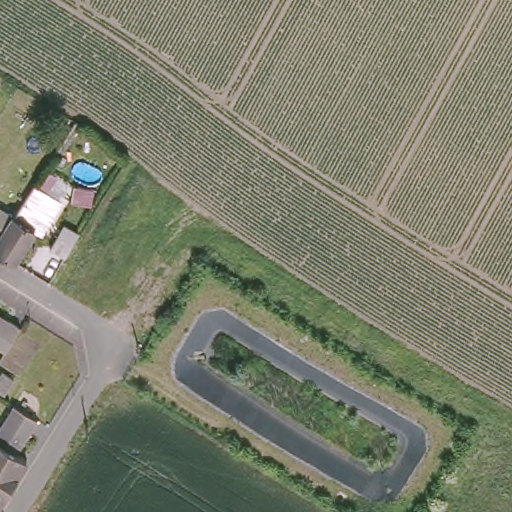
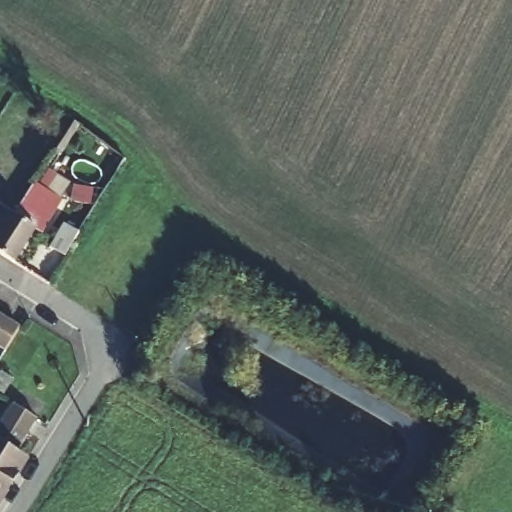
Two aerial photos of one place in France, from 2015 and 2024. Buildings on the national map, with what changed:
unchanged [(58,200),(38,233),(32,230),(33,229),(12,263),(0,256),(0,234),(11,216),(32,182),(58,200)]
unchanged [(0,234),(0,209),(11,216),(0,234)]
unchanged [(0,344),(0,317),(12,325),(0,344)]
unchanged [(35,415),(13,449),(23,456),(10,477),(8,480),(0,476),(0,418),(11,400),(35,415)]
unchanged [(0,493),(0,476),(8,480),(0,493)]

